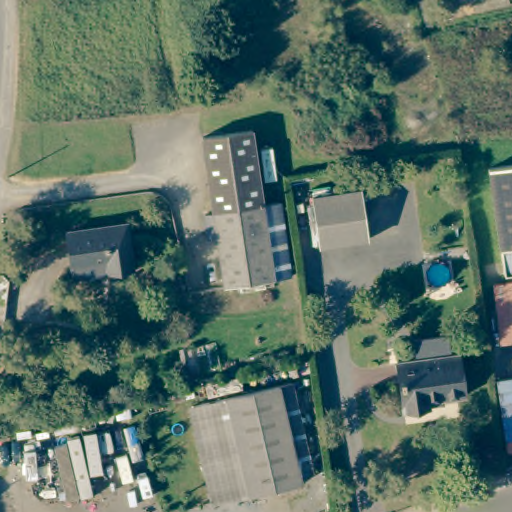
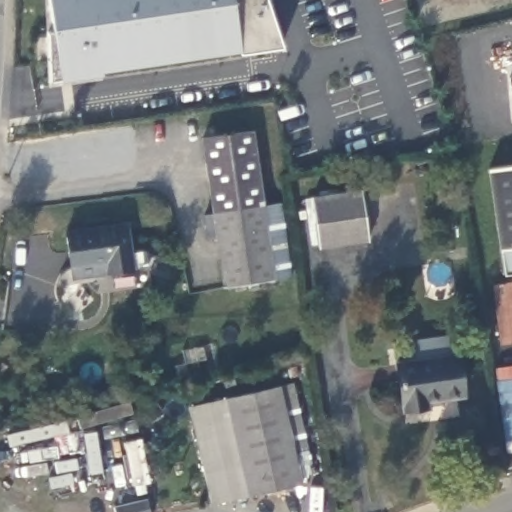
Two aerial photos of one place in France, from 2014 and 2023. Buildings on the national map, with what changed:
new [(238,51),(97,70),(99,75),(61,79),(48,80),(46,30),(53,28),(48,0),(268,0),(282,43),(238,51)]
unchanged [(205,135),(254,129),(261,180),(212,188),(205,135)]
unchanged [(487,170),(512,167),(512,250),(499,251),(487,170)]
unchanged [(264,205),(273,280),(225,286),(212,188),(261,180),(264,205)]
unchanged [(319,248),(312,197),(362,190),(370,241),(319,248)]
unchanged [(280,203),(289,278),(273,280),(264,205),(280,203)]
unchanged [(75,270),(69,235),(126,225),(134,271),(110,275),(77,281),(75,270)]
unchanged [(464,395),(430,400),(430,405),(404,409),(398,365),(459,357),(464,395)]
unchanged [(289,386),(310,476),(299,478),(278,389),(289,386)]
unchanged [(278,389),(299,478),(300,484),(248,496),(225,401),(278,389)]
unchanged [(224,401),(225,401),(239,465),(204,473),(189,409),(224,401)]
unchanged [(239,465),(246,496),(211,505),(204,473),(239,465)]

